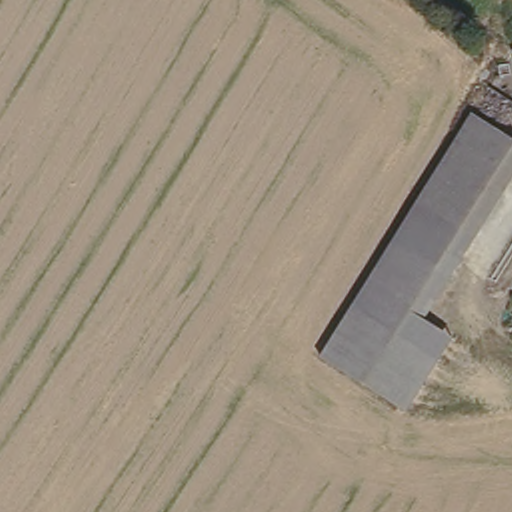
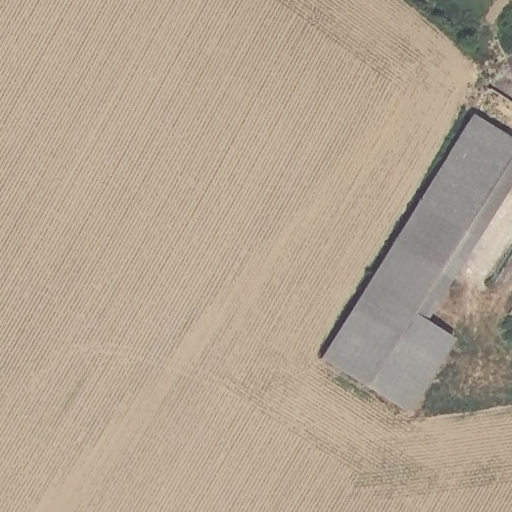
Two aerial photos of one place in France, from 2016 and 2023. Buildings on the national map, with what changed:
unchanged [(470,115),(512,142),(512,180),(422,320),(451,337),(405,415),(317,360),(470,115)]

